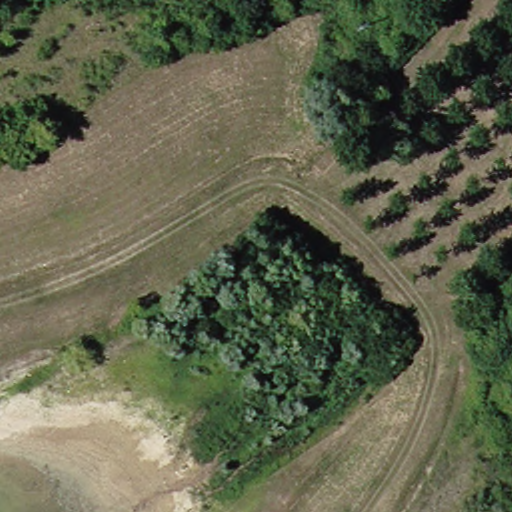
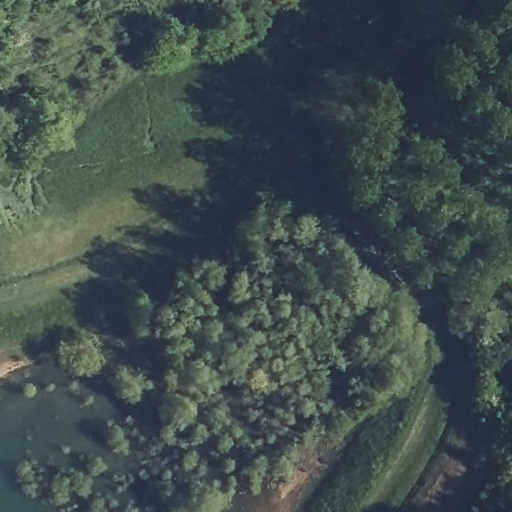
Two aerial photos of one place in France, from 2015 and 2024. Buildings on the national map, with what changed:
[]

